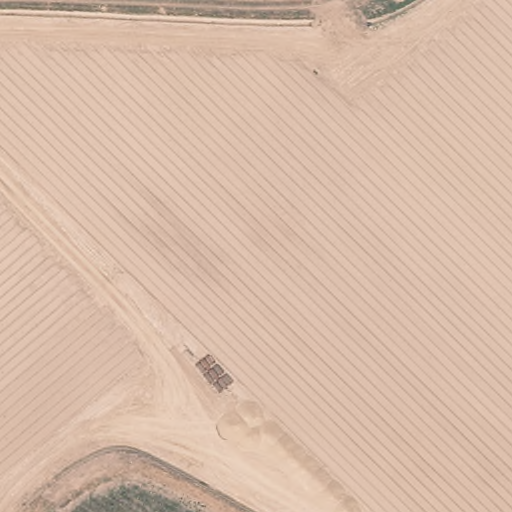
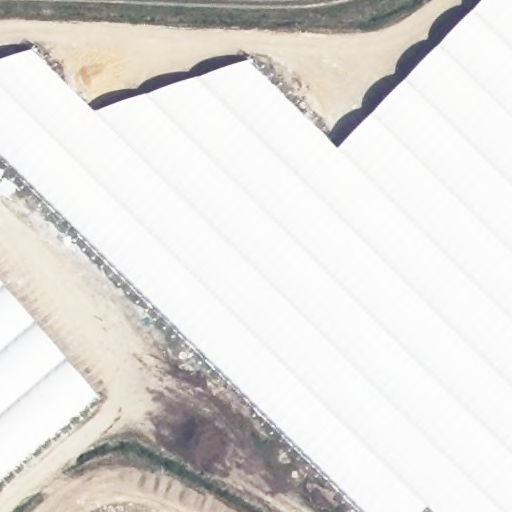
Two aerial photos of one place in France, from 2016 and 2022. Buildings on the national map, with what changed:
new [(93,113),(247,61),(337,148),(481,0),(512,0),(512,512),(432,512),(425,506),(420,512),(360,512),(0,151),(0,60),(31,50),(93,113)]
new [(0,478),(0,283),(96,395),(0,478)]

